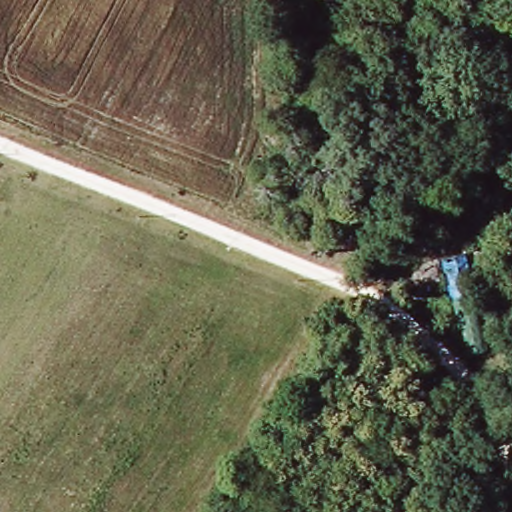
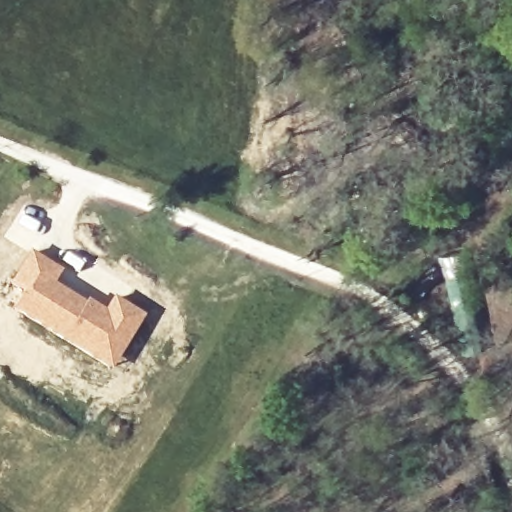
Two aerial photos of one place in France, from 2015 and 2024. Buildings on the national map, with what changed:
new [(28,251),(61,270),(54,283),(84,301),(86,298),(103,309),(112,295),(144,315),(110,370),(11,308),(21,290),(8,281),(28,251)]

